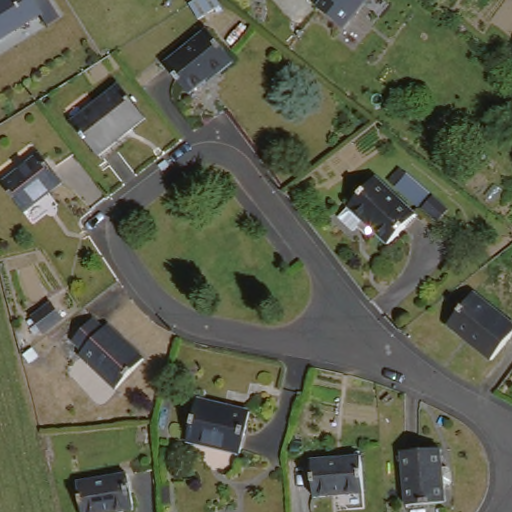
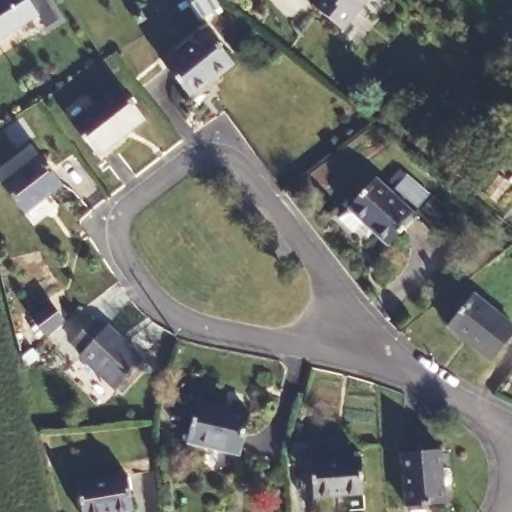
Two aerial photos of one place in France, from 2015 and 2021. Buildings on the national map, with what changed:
unchanged [(0,45),(0,0),(31,0),(41,16),(0,45)]
unchanged [(367,0),(350,25),(317,4),(319,0),(367,0)]
unchanged [(238,67),(222,79),(221,78),(193,99),(169,69),(212,34),(238,67)]
unchanged [(144,121),(98,159),(72,127),(118,89),(144,121)]
unchanged [(62,187),(25,216),(3,188),(40,159),(62,187)]
unchanged [(363,233),(359,237),(345,223),(355,213),(353,212),(381,182),(420,219),(393,248),(378,234),(372,241),(363,233)]
unchanged [(512,338),(491,364),(446,329),(472,298),(512,329),(512,338)]
unchanged [(65,318),(45,333),(34,319),(52,303),(65,318)]
unchanged [(107,338),(111,334),(149,369),(121,399),(85,366),(87,362),(85,359),(77,369),(67,361),(97,329),(107,338)]
unchanged [(249,412),(239,454),(239,458),(234,458),(188,448),(189,442),(198,399),(249,412)]
unchanged [(447,476),(448,488),(444,490),(440,491),(441,506),(402,509),(397,458),(436,454),(437,474),(444,473),(447,476)]
unchanged [(363,499),(313,502),(312,464),(362,461),(363,499)]
unchanged [(134,511),(126,512),(85,512),(79,482),(128,473),(134,511)]
unchanged [(174,502),(165,503),(164,484),(172,484),(174,502)]

